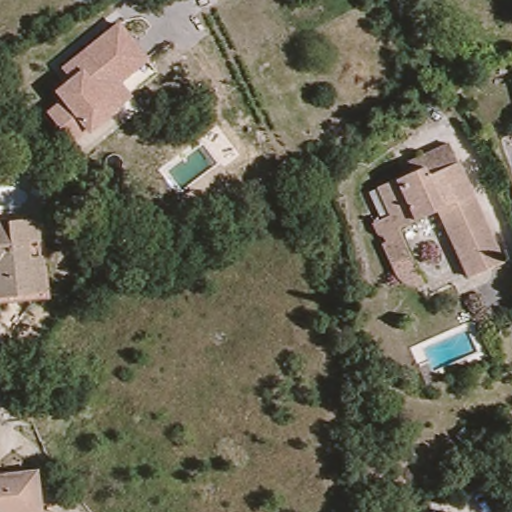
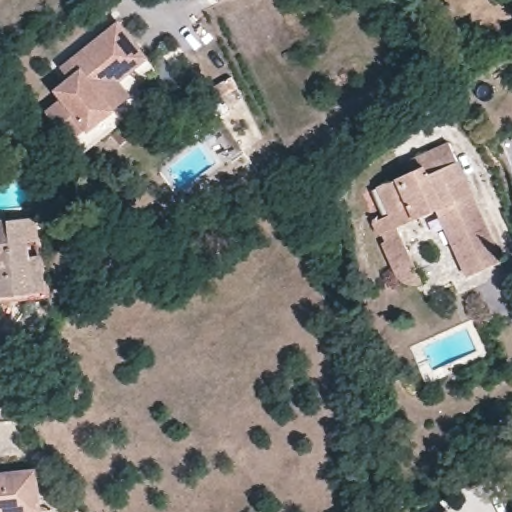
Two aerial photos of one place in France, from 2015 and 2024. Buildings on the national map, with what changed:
unchanged [(149,66),(120,87),(131,100),(68,152),(38,115),(56,101),(50,90),(66,78),(61,69),(118,26),(149,66)]
unchanged [(436,214),(398,231),(401,238),(387,245),(383,237),(378,239),(373,226),(390,218),(378,191),(412,175),(408,165),(450,147),(502,266),(475,277),(465,281),(436,214)]
unchanged [(37,219),(42,218),(45,239),(33,240),(35,256),(46,255),(50,290),(45,291),(38,292),(0,296),(0,223),(37,219)]
unchanged [(401,238),(422,286),(413,288),(405,286),(398,283),(395,280),(383,247),(387,245),(401,238)]
unchanged [(36,474),(41,512),(0,512),(0,478),(36,474)]

